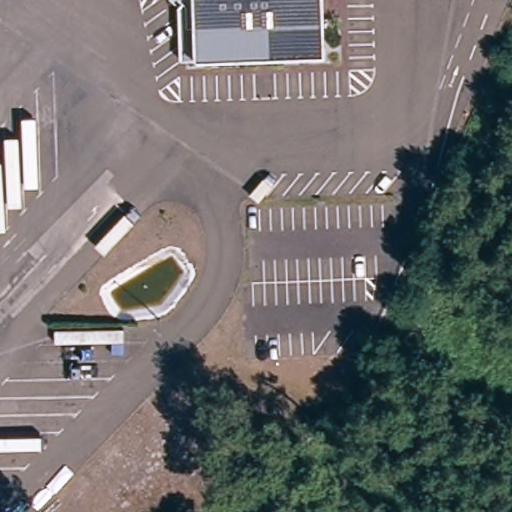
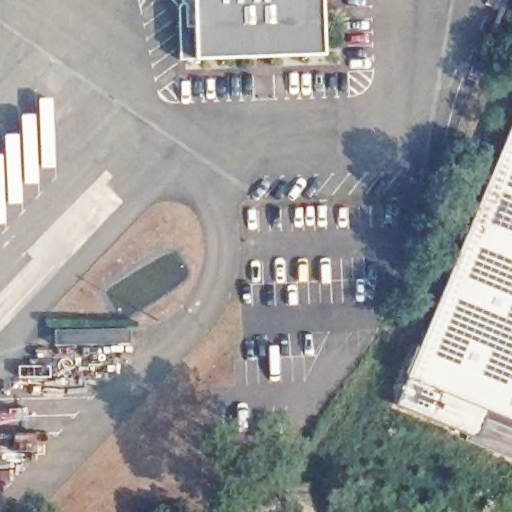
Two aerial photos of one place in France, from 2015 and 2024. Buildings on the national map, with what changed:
new [(327,57),(197,61),(182,59),(180,7),(172,0),(325,0),(327,57)]
new [(477,437),(398,403),(512,125),(512,421),(488,412),(477,437)]

